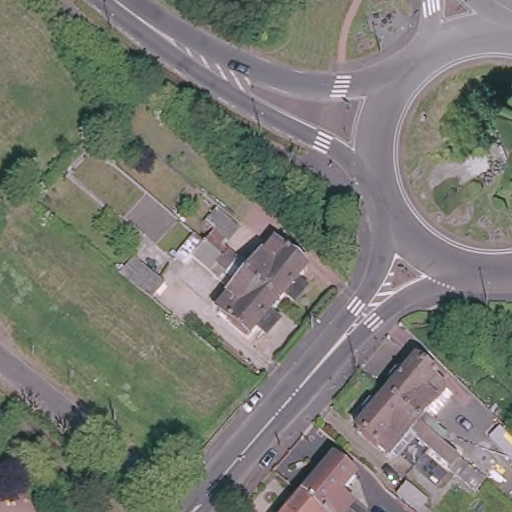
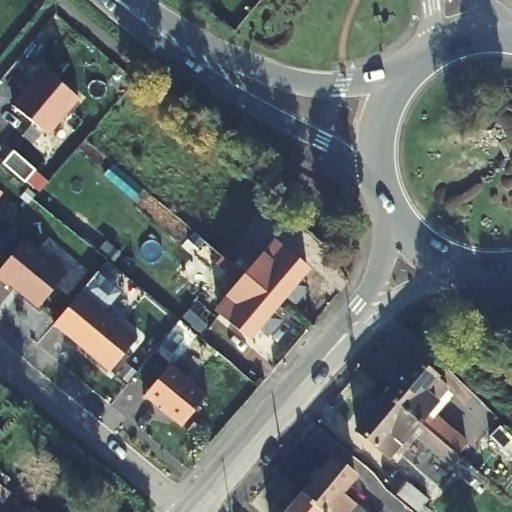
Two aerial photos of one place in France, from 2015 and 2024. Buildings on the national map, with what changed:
new [(28,94),(35,84),(34,82),(43,70),(78,100),(47,137),(13,107),(23,94),(28,94)]
unchanged [(215,232),(227,242),(223,247),(237,260),(240,256),(253,267),(273,243),(305,270),(295,282),(302,288),(293,300),(285,294),(277,303),(206,242),(215,232)]
new [(65,275),(37,308),(10,285),(8,287),(0,280),(0,269),(22,240),(65,275)]
unchanged [(268,313),(276,320),(265,332),(258,326),(247,338),(215,311),(237,286),(223,276),(226,273),(212,261),(208,265),(195,255),(206,242),(277,303),(268,313)]
new [(52,325),(80,292),(137,338),(109,372),(52,325)]
unchanged [(387,395),(396,383),(390,378),(400,366),(407,371),(417,358),(450,386),(430,410),(442,420),(439,423),(455,437),(460,430),(473,442),(460,457),(387,395)]
new [(170,365),(208,395),(182,427),(145,397),(170,365)]
unchanged [(460,457),(450,469),(437,458),(441,453),(425,440),(422,443),(410,432),(390,456),(357,430),(368,416),(362,410),(372,397),(379,403),(387,395),(460,457)]
unchanged [(334,454),(356,472),(342,488),(354,498),(348,505),(357,512),(328,512),(302,490),(334,454)]
unchanged [(328,512),(284,512),(302,490),(328,512)]

